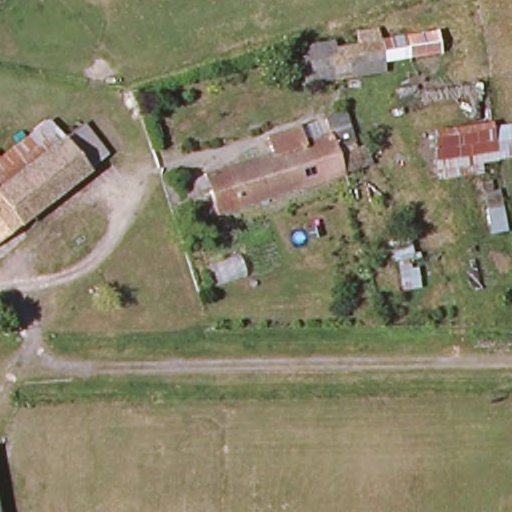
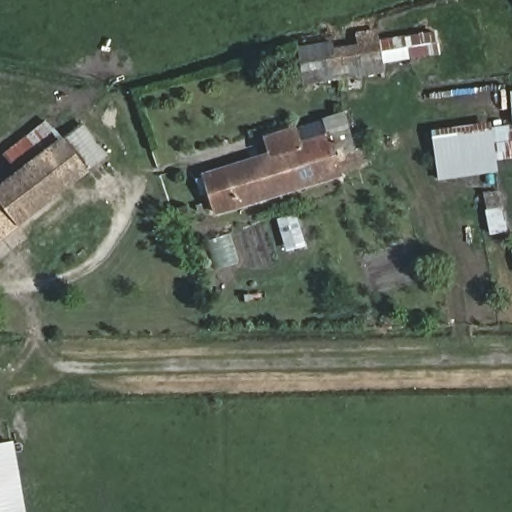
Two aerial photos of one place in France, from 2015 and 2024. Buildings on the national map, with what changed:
unchanged [(330,42),(332,47),(354,45),(353,33),(374,30),(378,38),(435,33),(438,54),(356,68),(356,74),(303,80),(300,47),(330,42)]
unchanged [(268,153),(260,138),(293,127),(302,144),(329,140),(323,123),(344,116),(355,150),(365,149),(369,166),(213,218),(200,174),(268,153)]
unchanged [(43,119),(82,174),(0,238),(0,154),(43,119)]
unchanged [(488,126),(494,160),(484,163),(485,174),(439,180),(427,135),(488,126)]
new [(13,440),(26,512),(0,512),(0,443),(13,440)]

